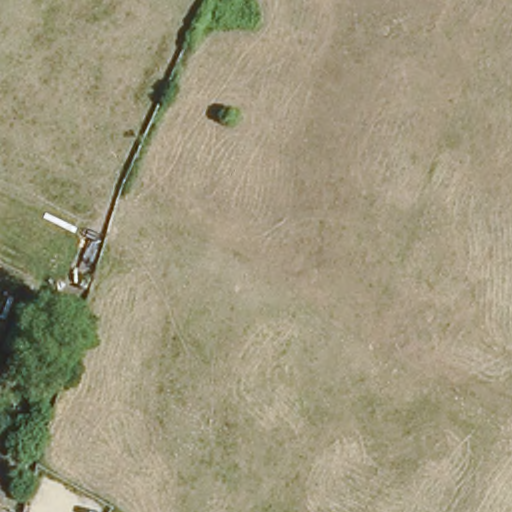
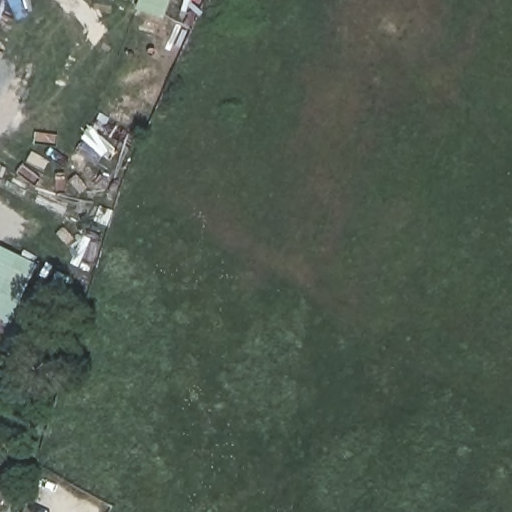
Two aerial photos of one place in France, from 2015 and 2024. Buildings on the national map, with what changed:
new [(7,324),(0,321),(0,246),(36,263),(7,324)]

